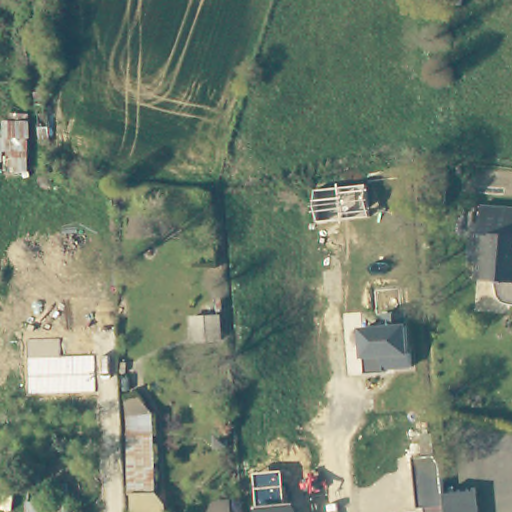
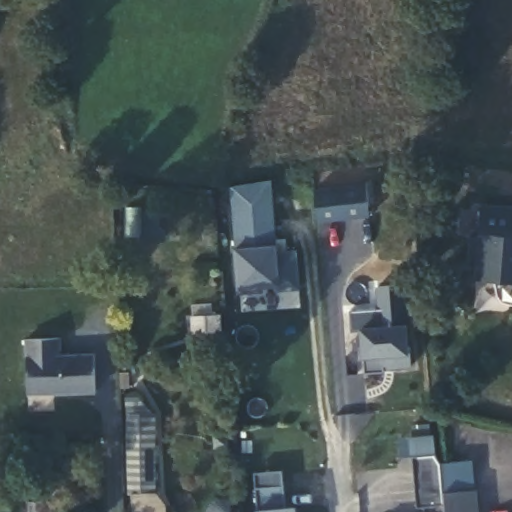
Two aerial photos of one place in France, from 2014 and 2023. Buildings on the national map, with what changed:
unchanged [(29,174),(11,172),(11,140),(4,140),(5,120),(31,122),(29,174)]
new [(278,252),(297,249),(300,288),(279,290),(280,285),(263,286),(263,291),(240,292),(239,288),(235,246),(231,187),(273,178),(278,252)]
unchanged [(316,190),(366,185),(370,218),(320,224),(316,190)]
unchanged [(508,306),(503,300),(502,292),(502,284),(481,283),(482,264),(474,264),(475,241),(484,241),(486,208),(512,209),(512,308),(508,306)]
unchanged [(190,316),(222,314),(223,341),(191,343),(190,316)]
unchanged [(365,357),(361,358),(359,327),(409,323),(413,368),(387,369),(387,373),(365,374),(365,357)]
unchanged [(28,394),(27,337),(63,336),(63,353),(96,352),(98,392),(28,394)]
unchanged [(156,480),(156,485),(131,486),(130,410),(153,409),(156,480)]
unchanged [(413,459),(434,458),(441,465),(445,493),(446,507),(418,509),(413,459)]
unchanged [(259,505),(255,476),(283,474),(287,504),(295,504),(296,512),(254,512),(254,506),(259,505)]
unchanged [(472,479),(475,512),(446,512),(444,482),(472,479)]
unchanged [(158,493),(166,508),(167,512),(132,512),(131,493),(158,493)]
unchanged [(73,500),(74,512),(26,512),(26,499),(73,500)]
new [(213,504),(219,500),(229,499),(230,512),(208,512),(209,510),(213,504)]

